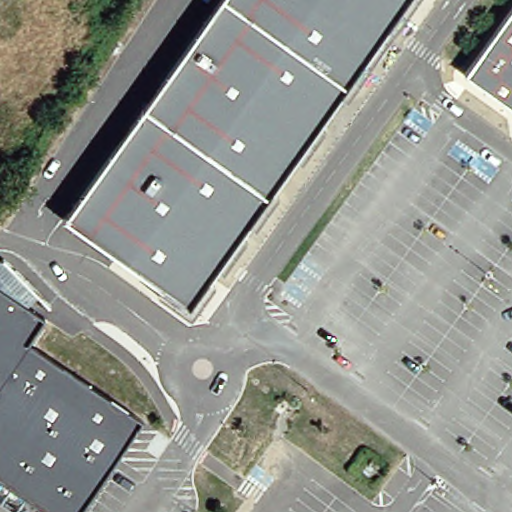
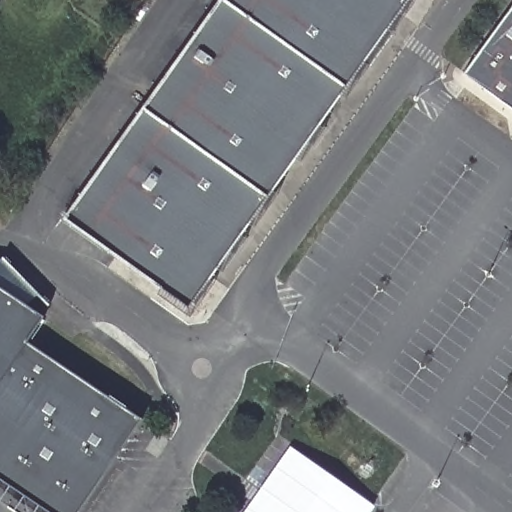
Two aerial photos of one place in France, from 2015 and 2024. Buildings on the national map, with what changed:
unchanged [(218,0),(409,0),(395,20),(365,60),(185,310),(60,220),(218,0)]
unchanged [(470,85),(462,79),(466,73),(512,9),(512,115),(470,85)]
unchanged [(0,286),(43,316),(26,341),(47,355),(141,418),(77,512),(47,512),(0,480),(0,286)]
unchanged [(481,433),(475,443),(468,439),(475,429),(481,433)]
new [(244,512),(290,446),(373,505),(369,512),(244,512)]

